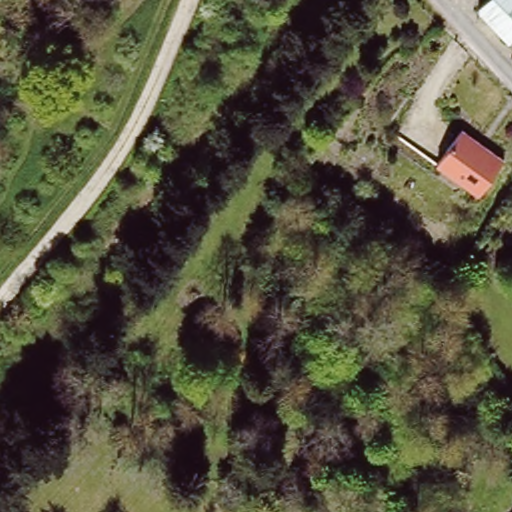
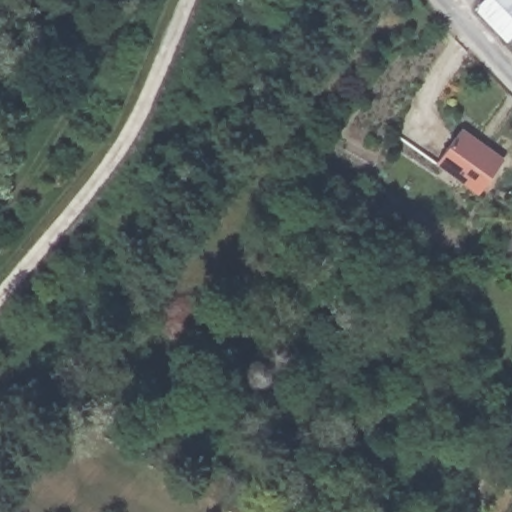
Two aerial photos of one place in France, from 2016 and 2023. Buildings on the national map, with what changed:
unchanged [(512,0),(512,31),(488,5),(494,0),(512,0)]
unchanged [(506,160),(480,194),(440,164),(466,130),(506,160)]

